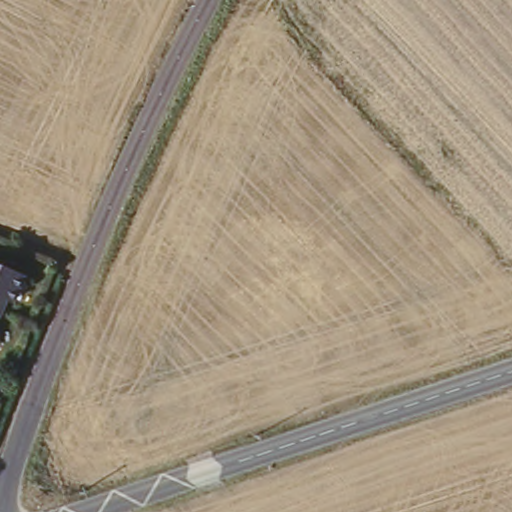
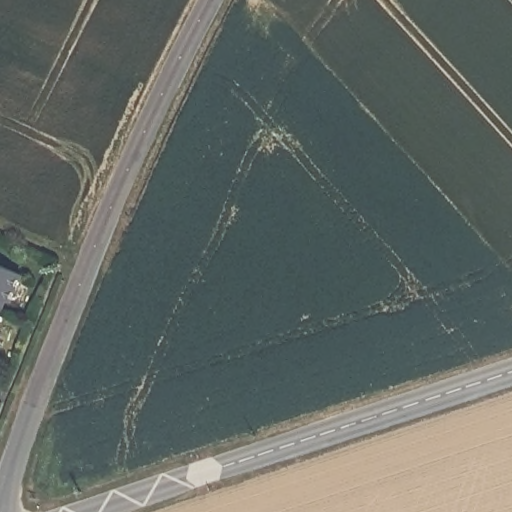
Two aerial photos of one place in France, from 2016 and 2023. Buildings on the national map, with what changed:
unchanged [(24,271),(11,300),(7,297),(0,313),(0,260),(24,271)]

